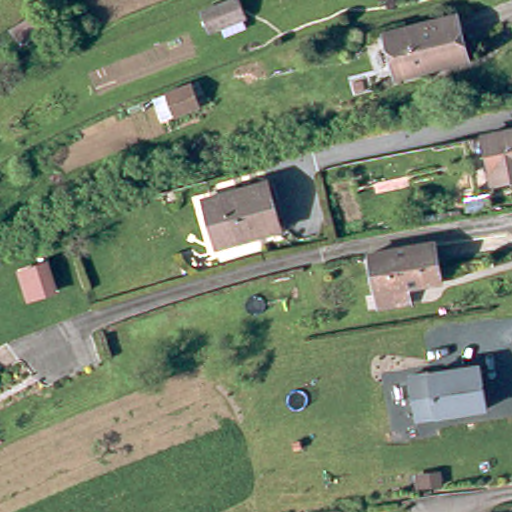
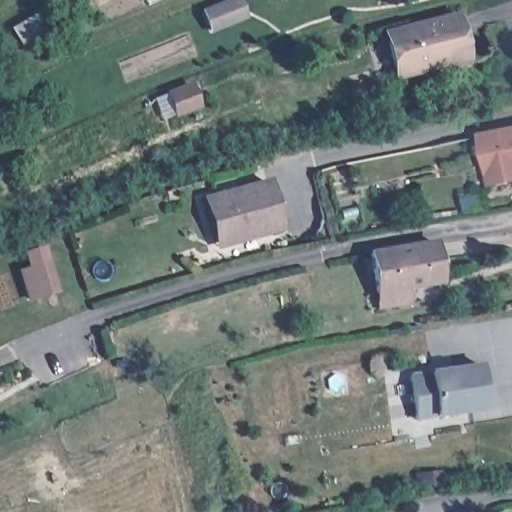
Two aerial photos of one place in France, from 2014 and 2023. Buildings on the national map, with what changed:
unchanged [(227,2),(235,0),(238,0),(245,17),(235,21),(212,30),(204,12),(227,2)]
unchanged [(420,65),(387,73),(375,29),(448,10),(457,49),(460,55),(420,65)]
unchanged [(48,30),(22,46),(12,29),(37,13),(48,30)]
unchanged [(197,106),(177,114),(168,94),(190,86),(197,106)]
unchanged [(479,136),(512,130),(512,179),(489,184),(479,136)]
unchanged [(282,229),(217,247),(205,200),(268,182),(282,229)]
unchanged [(317,237),(325,215),(330,235),(317,237)]
unchanged [(377,308),(374,293),(372,293),(365,254),(430,243),(437,282),(405,288),(407,302),(377,308)]
unchanged [(52,261),(62,295),(30,304),(18,272),(52,261)]
unchanged [(479,365),(487,409),(416,422),(408,374),(479,365)]

